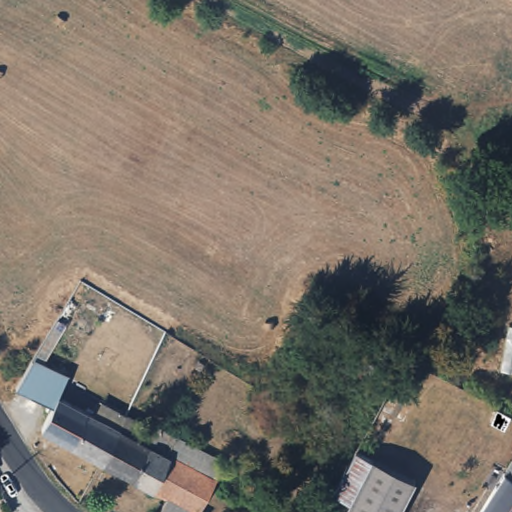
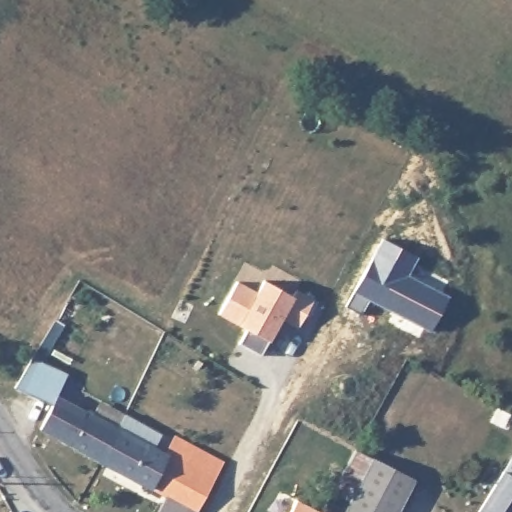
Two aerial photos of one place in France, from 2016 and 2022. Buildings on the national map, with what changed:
new [(354,291),(382,240),(416,257),(407,277),(448,297),(430,330),(354,291)]
new [(239,343),(246,332),(218,316),(236,281),(256,291),(262,280),(293,297),(296,290),(315,300),(298,329),(282,321),(261,356),(239,343)]
unchanged [(54,402),(41,395),(19,382),(34,359),(36,356),(54,366),(71,376),(61,393),(119,427),(101,461),(42,426),(55,403),(54,402)]
unchanged [(154,432),(157,427),(222,465),(195,512),(191,512),(164,497),(101,461),(119,427),(126,415),(154,432)]
unchanged [(415,480),(398,512),(345,512),(352,498),(337,488),(358,450),(415,480)]
unchanged [(512,482),(500,475),(512,454),(512,482)]
unchanged [(490,493),(500,475),(512,482),(512,512),(480,512),(490,493)]
unchanged [(191,512),(156,512),(164,497),(191,512)]
new [(295,500),(320,512),(289,512),(295,500)]

